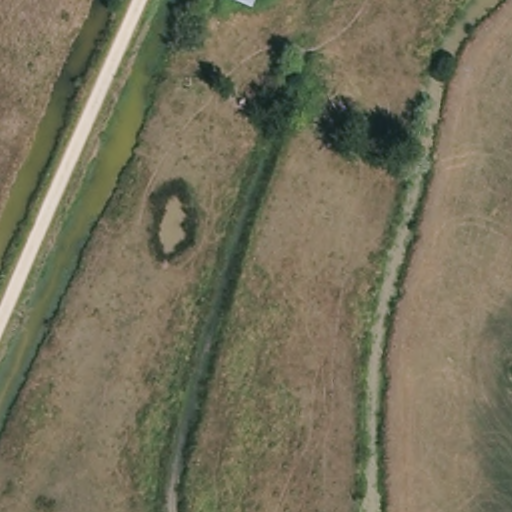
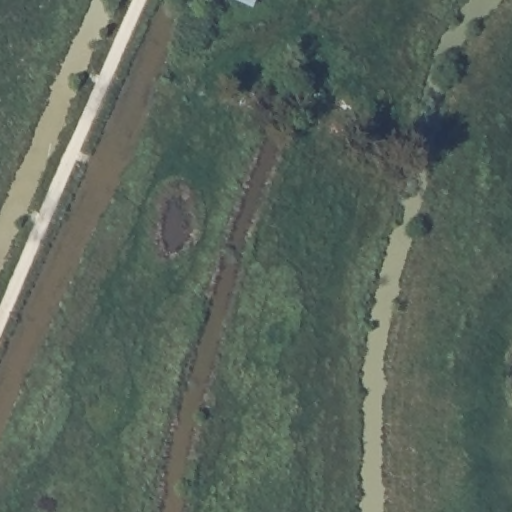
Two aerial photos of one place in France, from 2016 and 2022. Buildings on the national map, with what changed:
unchanged [(252,10),(224,0),(255,0),(252,10)]

